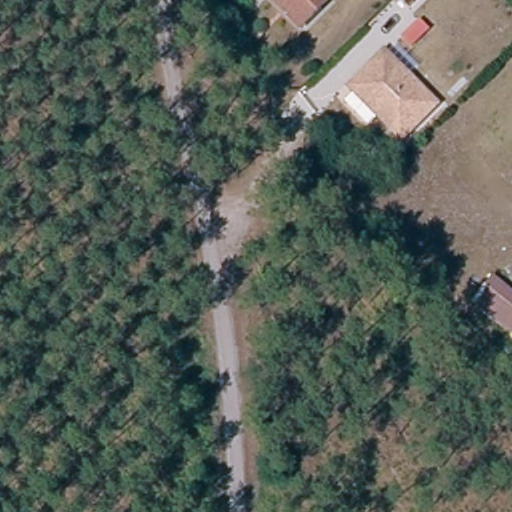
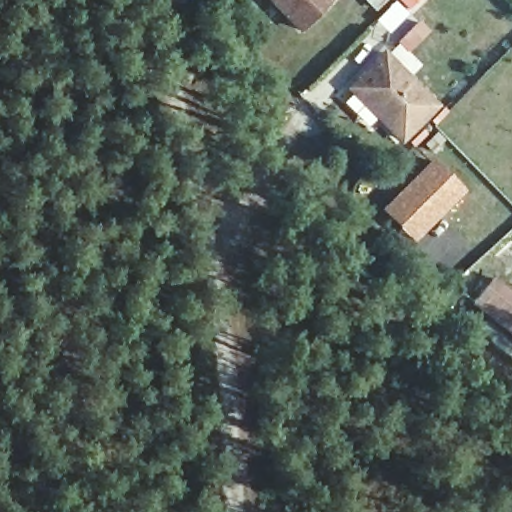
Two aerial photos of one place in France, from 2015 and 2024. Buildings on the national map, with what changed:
unchanged [(305,32),(271,0),(334,0),(335,0),(305,32)]
unchanged [(353,88),(387,52),(438,102),(404,139),(400,134),(353,88)]
new [(466,192),(415,245),(381,212),(432,159),(466,192)]
unchanged [(512,335),(472,304),(500,274),(512,285),(512,335)]

